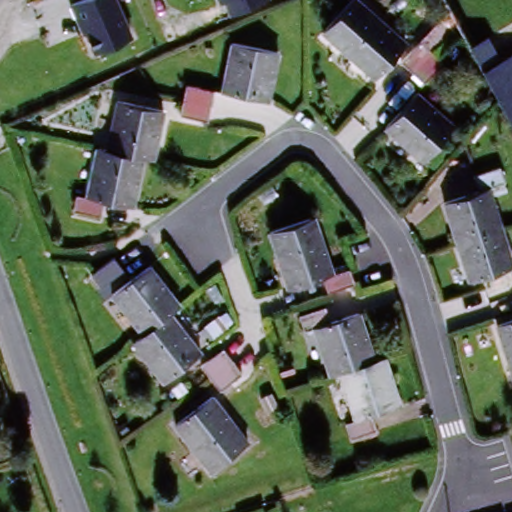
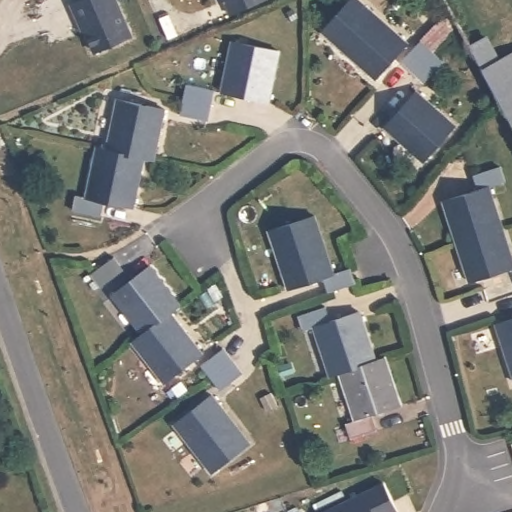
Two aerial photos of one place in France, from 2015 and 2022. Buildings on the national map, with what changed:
unchanged [(131,35),(94,51),(85,30),(86,29),(80,15),(77,17),(70,2),(76,0),(116,0),(131,35)]
unchanged [(266,2),(226,19),(218,4),(214,5),(212,0),(265,0),(266,2)]
unchanged [(316,30),(342,0),(355,0),(400,40),(368,76),(316,30)]
unchanged [(423,83),(410,71),(397,60),(418,37),(431,50),(443,60),(423,83)]
unchanged [(500,60),(512,53),(512,124),(472,45),(489,37),(500,60)]
unchanged [(229,46),(274,54),(266,102),(221,95),(229,46)]
unchanged [(179,120),(181,104),(183,90),(211,94),(209,110),(206,125),(179,120)]
unchanged [(385,127),(415,92),(448,120),(417,155),(385,127)]
unchanged [(118,95),(166,104),(159,150),(146,149),(111,143),(118,95)]
unchanged [(101,142),(111,143),(146,149),(137,202),(111,198),(109,212),(79,207),(81,194),(93,195),(101,142)]
unchanged [(470,195),(466,178),(494,171),(498,187),(492,189),(502,228),(451,240),(442,201),(470,195)]
unchanged [(279,277),(260,224),(305,207),(324,261),(335,258),(341,274),(315,283),(309,267),(279,277)]
unchanged [(511,265),(460,277),(451,240),(502,228),(511,265)]
unchanged [(83,283),(103,265),(114,276),(94,295),(83,283)]
unchanged [(102,305),(137,270),(172,307),(168,312),(138,342),(102,305)]
unchanged [(316,326),(303,331),(298,315),(324,307),(328,322),(358,312),(374,359),(341,370),(332,373),(316,326)]
unchanged [(172,383),(135,346),(138,342),(168,312),(205,350),(172,383)]
unchanged [(512,321),(512,359),(500,325),(512,321)]
unchanged [(223,390),(212,378),(201,366),(222,347),(232,358),(243,370),(223,390)]
unchanged [(341,370),(374,359),(386,355),(404,402),(373,414),(378,429),(352,438),(347,423),(358,420),(341,370)]
unchanged [(226,467),(181,423),(213,390),(258,435),(226,467)]
new [(400,511),(399,512),(325,512),(384,481),(400,511)]

